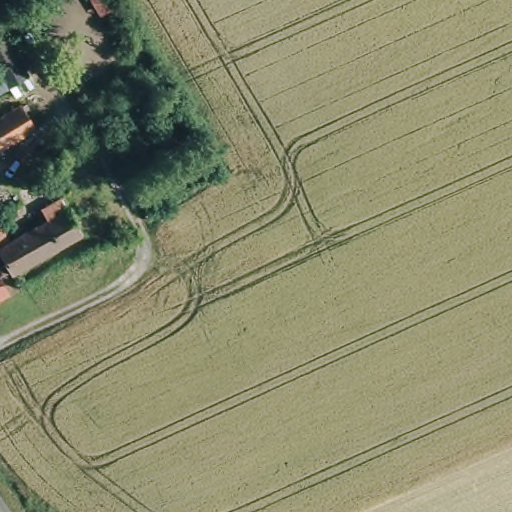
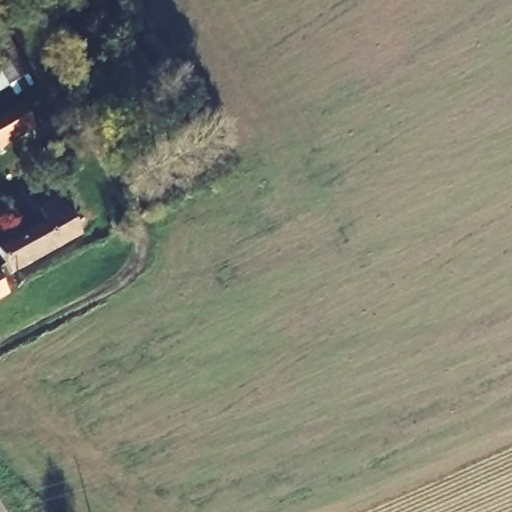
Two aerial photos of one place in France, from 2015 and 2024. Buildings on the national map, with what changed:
unchanged [(25,104),(40,128),(0,151),(0,118),(25,104)]
unchanged [(147,149),(126,160),(114,136),(134,125),(147,149)]
unchanged [(50,223),(42,211),(61,200),(84,237),(12,281),(0,261),(0,253),(8,248),(50,223)]
unchanged [(8,248),(0,253),(0,235),(8,248)]
unchanged [(10,294),(0,300),(0,278),(10,294)]

